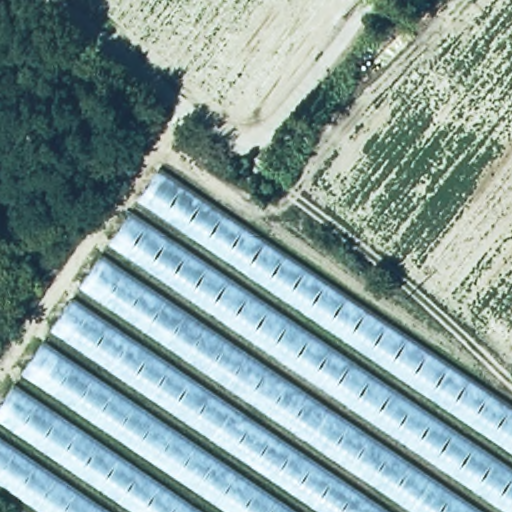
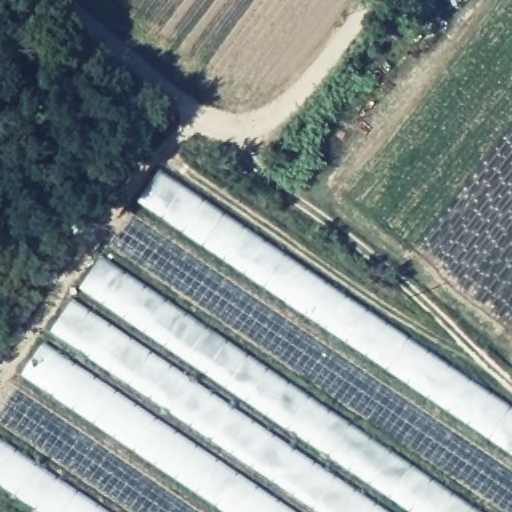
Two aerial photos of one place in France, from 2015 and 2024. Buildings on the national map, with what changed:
unchanged [(0,408),(163,170),(512,406),(512,512),(48,512),(0,479),(0,408)]

